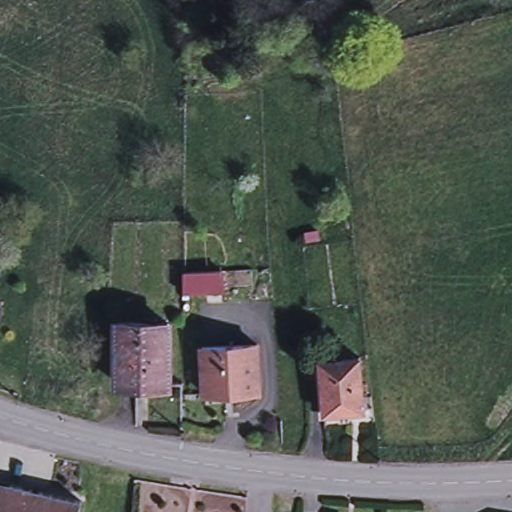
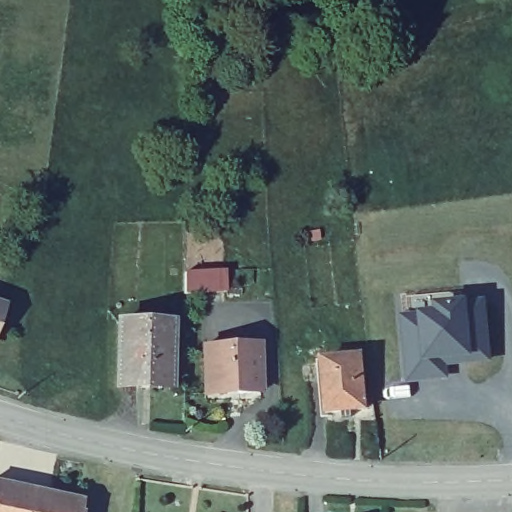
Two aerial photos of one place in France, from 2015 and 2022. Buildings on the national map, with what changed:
new [(487,360),(443,365),(444,377),(409,381),(402,314),(408,313),(407,299),(461,295),(462,307),(480,305),(487,360)]
unchanged [(2,308),(0,316),(0,308),(2,308)]
unchanged [(170,326),(168,386),(118,385),(120,325),(170,326)]
unchanged [(258,345),(260,393),(237,394),(237,391),(202,392),(201,346),(258,345)]
unchanged [(360,359),(365,411),(349,412),(350,420),(342,421),(340,412),(326,414),(322,363),(360,359)]
unchanged [(38,481),(88,492),(84,512),(0,512),(0,472),(38,481)]

